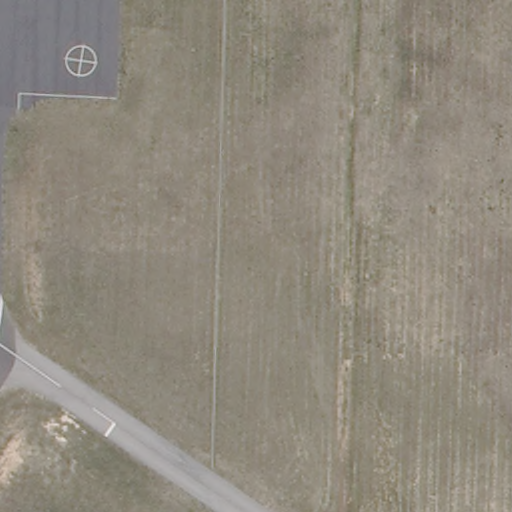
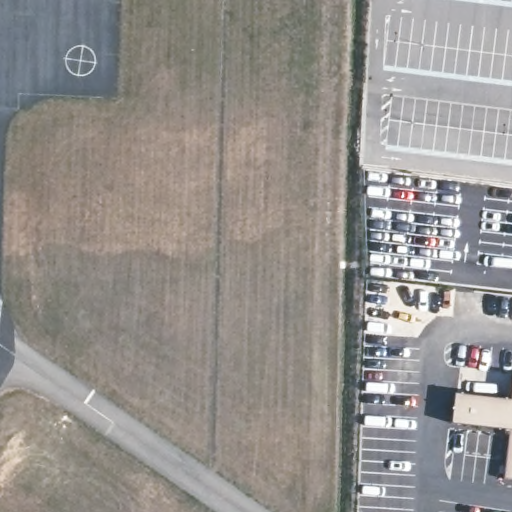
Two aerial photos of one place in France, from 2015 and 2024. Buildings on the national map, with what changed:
new [(508,429),(450,422),(453,391),(509,399),(512,377),(512,480),(502,479),(508,429)]

